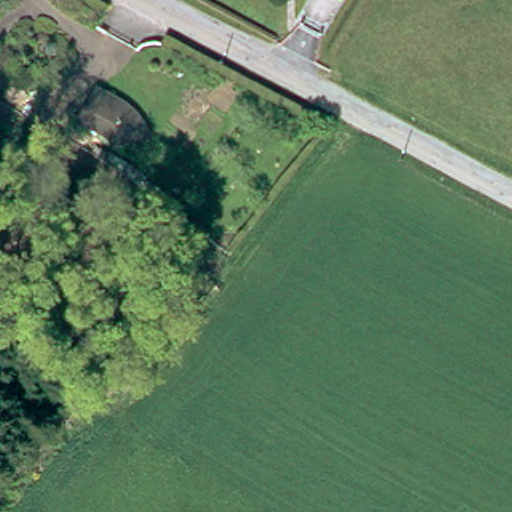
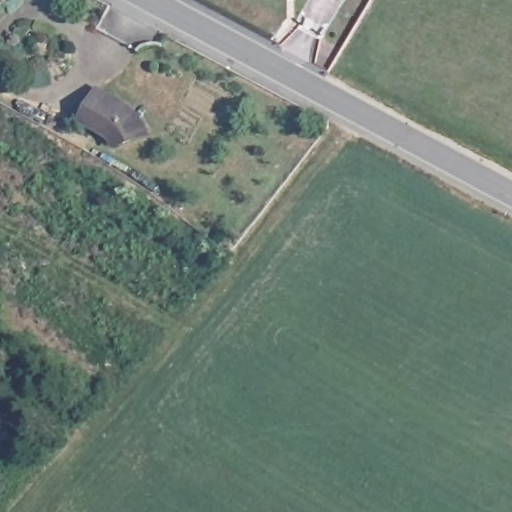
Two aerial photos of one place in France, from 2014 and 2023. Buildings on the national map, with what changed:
unchanged [(101,90),(130,109),(148,133),(151,142),(117,146),(111,136),(83,117),(101,90)]

